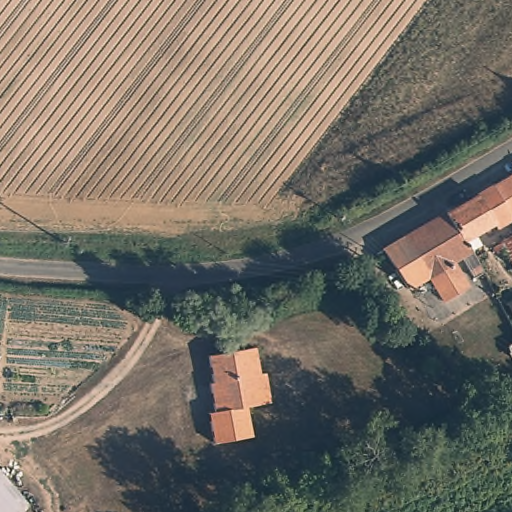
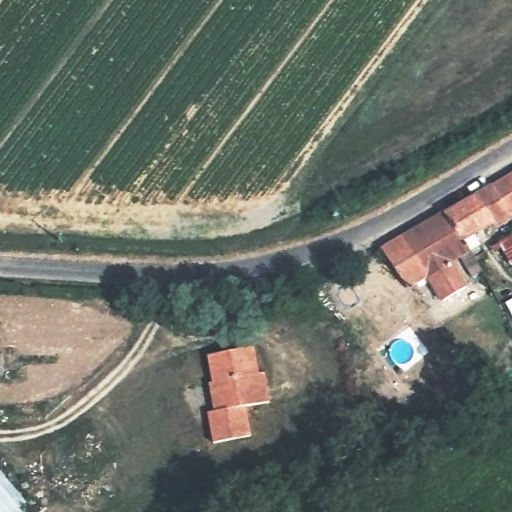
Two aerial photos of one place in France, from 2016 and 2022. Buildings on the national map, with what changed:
unchanged [(500,250),(496,243),(474,257),(445,212),(491,186),(512,175),(512,270),(500,250)]
unchanged [(442,304),(429,284),(427,280),(401,236),(445,212),(474,257),(456,268),(468,287),(442,304)]
unchanged [(427,280),(408,291),(381,249),(402,237),(427,280)]
unchanged [(259,374),(264,374),(271,403),(248,409),(253,436),(215,445),(209,414),(213,414),(207,384),(213,383),(207,355),(253,346),(259,374)]
unchanged [(22,512),(0,512),(0,481),(24,511),(22,512)]

